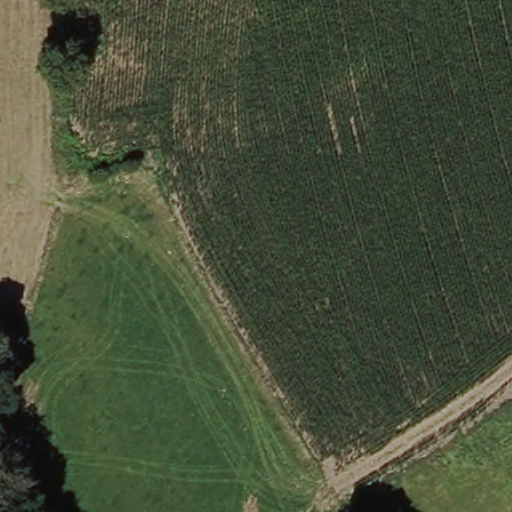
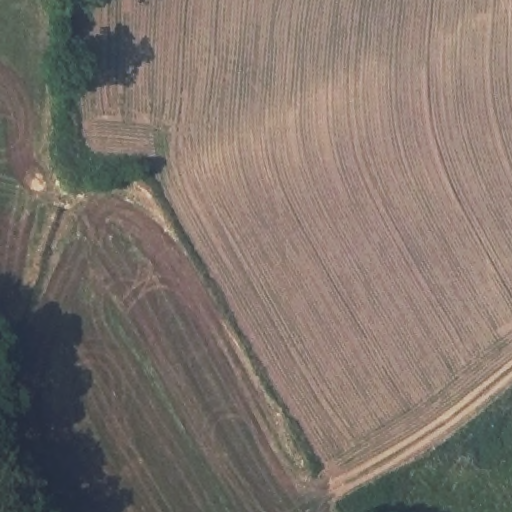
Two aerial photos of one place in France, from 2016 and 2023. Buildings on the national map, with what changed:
unchanged [(134,163),(140,182),(122,188),(117,168),(134,163)]

